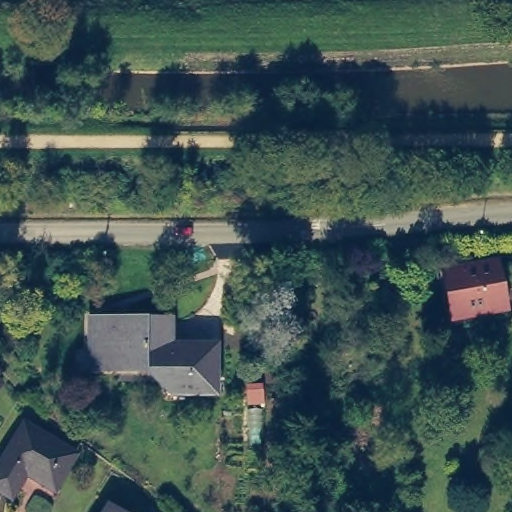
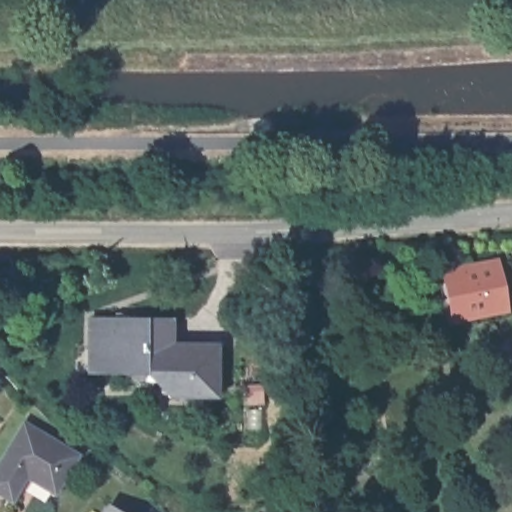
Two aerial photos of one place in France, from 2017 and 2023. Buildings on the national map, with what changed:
unchanged [(510,309),(454,320),(445,270),(500,259),(510,309)]
unchanged [(146,364),(101,363),(93,363),(94,345),(94,315),(171,316),(170,356),(170,364),(146,364)]
unchanged [(171,368),(175,344),(218,340),(217,396),(167,396),(139,368),(171,368)]
unchanged [(77,454),(56,488),(27,471),(13,496),(0,489),(0,467),(26,424),(77,454)]
unchanged [(126,512),(105,512),(111,503),(126,512)]

